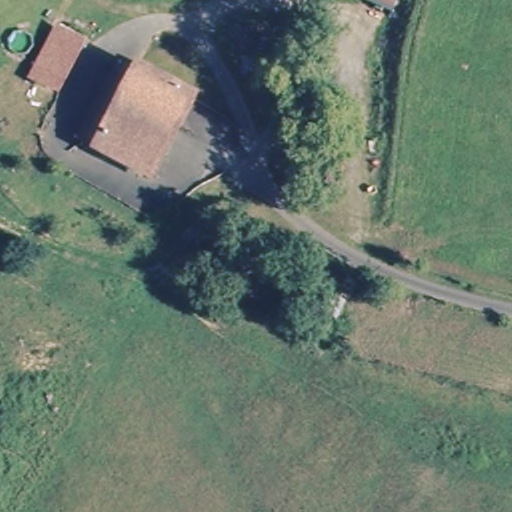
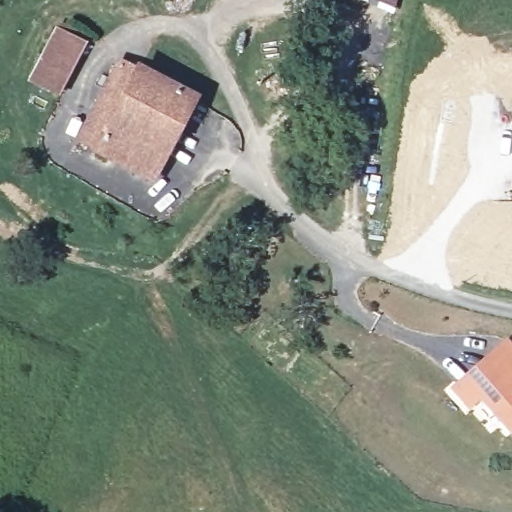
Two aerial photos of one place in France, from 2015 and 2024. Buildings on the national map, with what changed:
unchanged [(394,14),(358,0),(398,0),(394,14)]
unchanged [(29,81),(57,29),(86,44),(59,98),(29,81)]
unchanged [(156,189),(75,145),(61,132),(75,107),(88,116),(117,56),(138,65),(171,83),(206,102),(156,189)]
new [(507,340),(512,346),(512,435),(511,436),(480,401),(469,410),(450,388),(507,340)]

